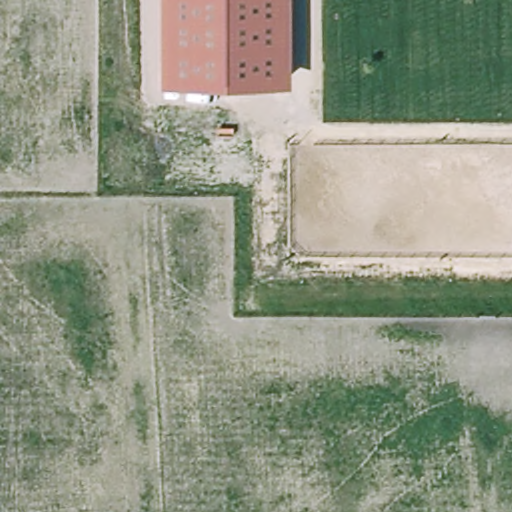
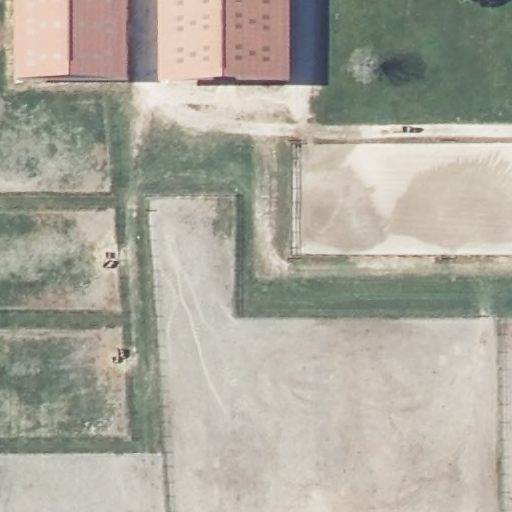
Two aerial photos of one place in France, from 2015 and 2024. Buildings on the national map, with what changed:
new [(17,83),(17,0),(128,0),(128,83),(17,83)]
unchanged [(162,84),(161,0),(290,0),(290,86),(162,84)]

